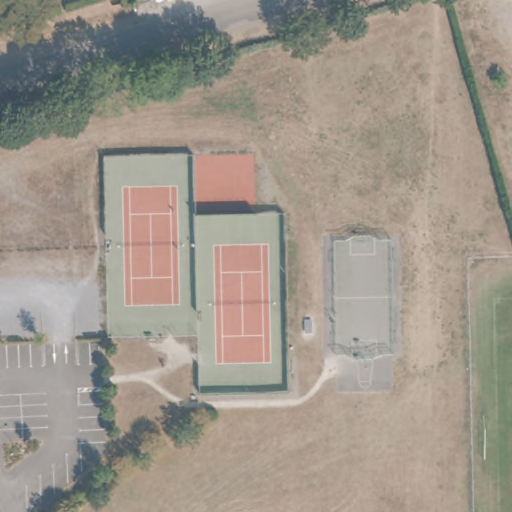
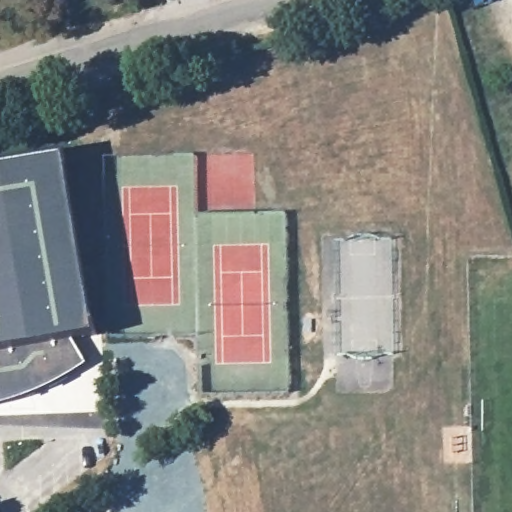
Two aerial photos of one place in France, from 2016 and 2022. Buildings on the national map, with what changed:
new [(69,342),(49,364),(17,388),(0,397),(0,162),(44,153),(69,342)]

